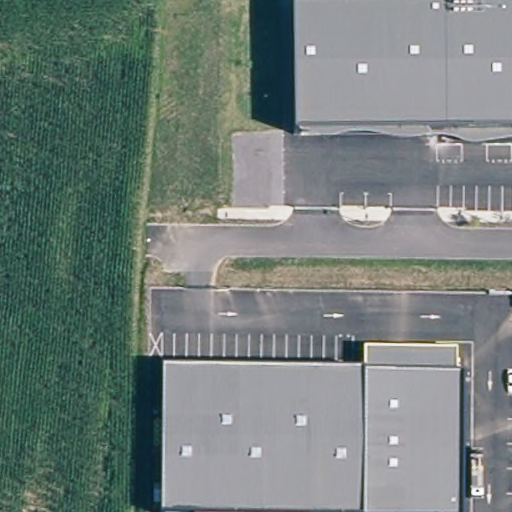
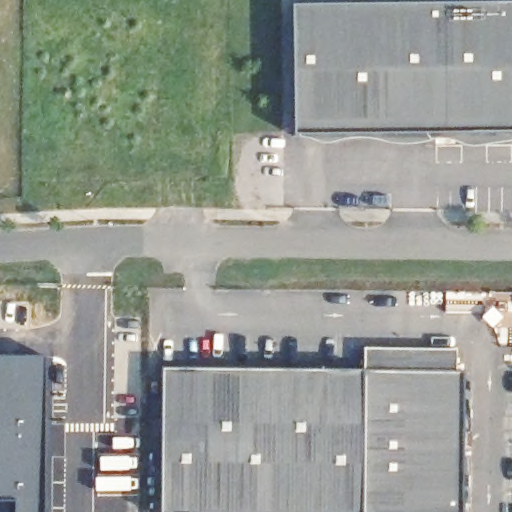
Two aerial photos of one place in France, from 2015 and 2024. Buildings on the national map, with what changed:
unchanged [(294,132),(292,6),(512,2),(512,129),(294,132)]
unchanged [(456,371),(462,371),(462,512),(161,512),(162,368),(365,370),(365,347),(456,349),(456,371)]
new [(46,387),(41,454),(40,512),(12,512),(11,502),(0,502),(0,355),(47,356),(46,387)]

